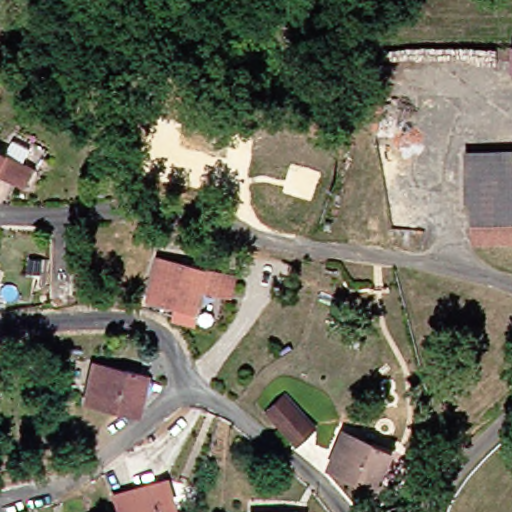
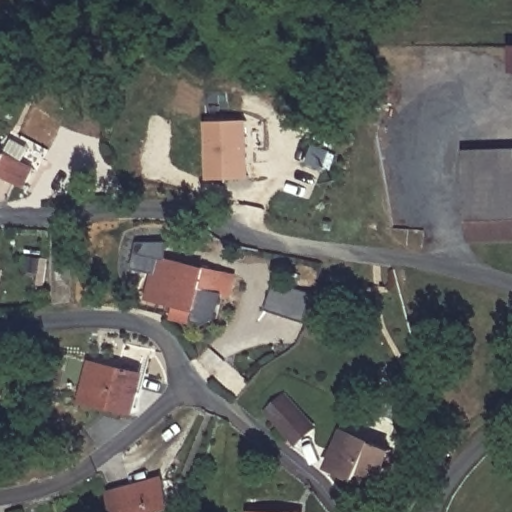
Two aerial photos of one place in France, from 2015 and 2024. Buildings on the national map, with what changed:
unchanged [(508,48),(512,48),(512,73),(507,72),(508,48)]
new [(251,178),(207,179),(206,120),(250,120),(251,178)]
unchanged [(1,154),(8,140),(25,149),(18,163),(28,168),(20,186),(0,176),(0,154),(1,154)]
unchanged [(460,151),(512,150),(512,174),(460,175),(460,151)]
unchanged [(512,239),(468,240),(467,199),(461,199),(460,175),(512,174),(512,239)]
unchanged [(365,228),(368,216),(380,219),(377,230),(365,228)]
unchanged [(156,314),(160,302),(145,298),(155,258),(230,277),(225,296),(193,288),(188,308),(185,321),(156,314)]
unchanged [(145,374),(135,412),(84,401),(92,362),(145,374)]
unchanged [(310,432),(292,447),(263,417),(280,400),(310,432)]
unchanged [(369,447),(385,454),(388,455),(387,457),(374,491),(325,471),(338,435),(369,447)]
unchanged [(172,506),(152,512),(117,512),(112,493),(165,479),(172,506)]

